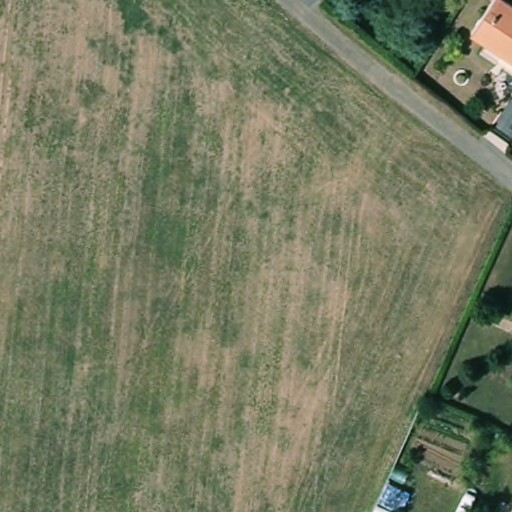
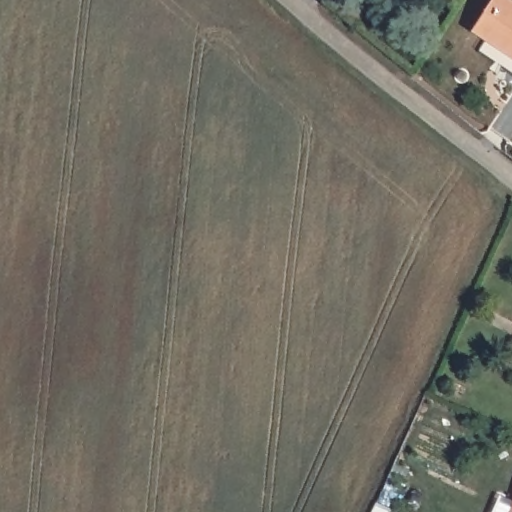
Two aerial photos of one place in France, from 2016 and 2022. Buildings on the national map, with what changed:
unchanged [(505,0),(512,5),(512,39),(504,51),(476,31),(496,0),(505,0)]
unchanged [(512,39),(512,55),(504,51),(512,39)]
unchanged [(512,511),(512,512),(511,512),(512,511)]

